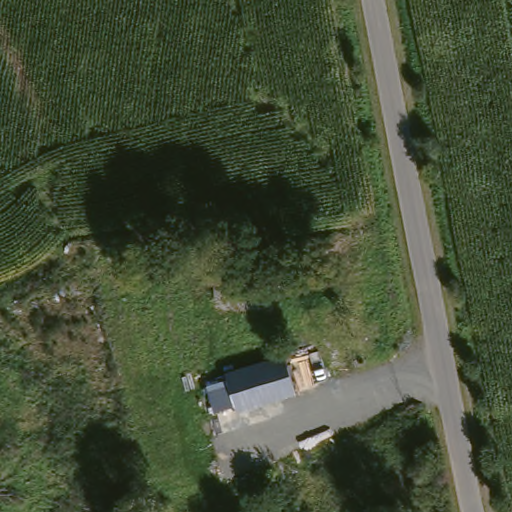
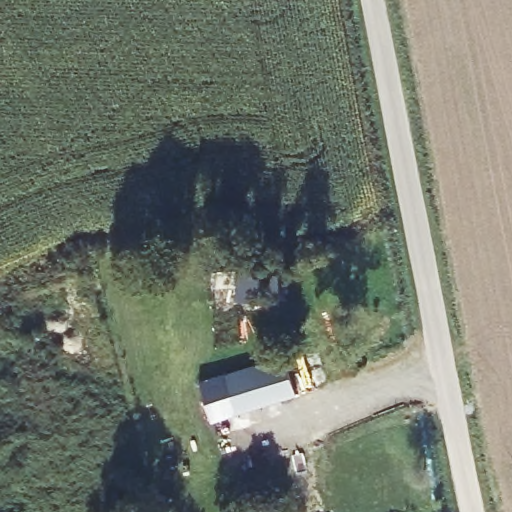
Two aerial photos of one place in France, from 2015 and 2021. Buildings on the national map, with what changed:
unchanged [(240,415),(232,409),(214,413),(206,387),(224,383),(224,377),(283,357),(298,396),(240,415)]

